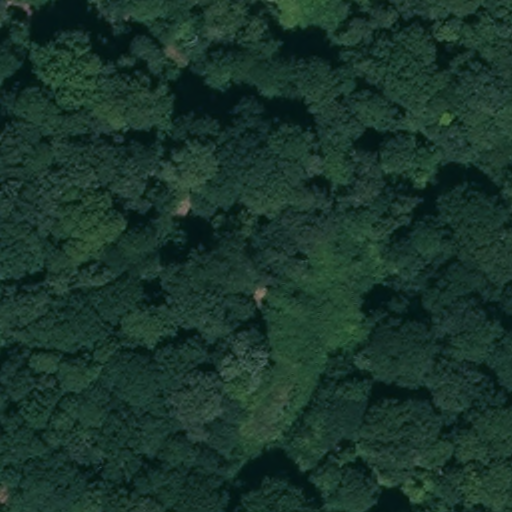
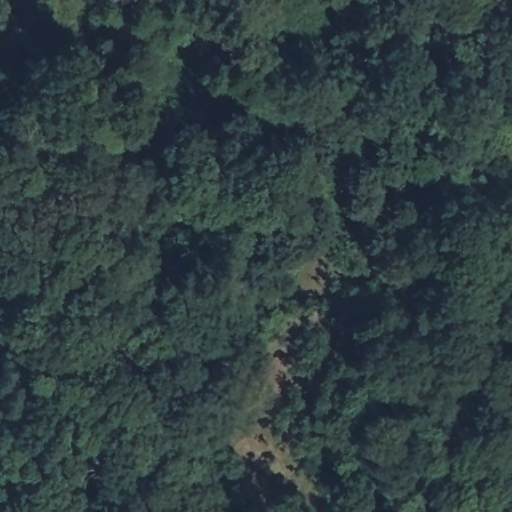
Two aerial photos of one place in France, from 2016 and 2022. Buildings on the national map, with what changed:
[]

